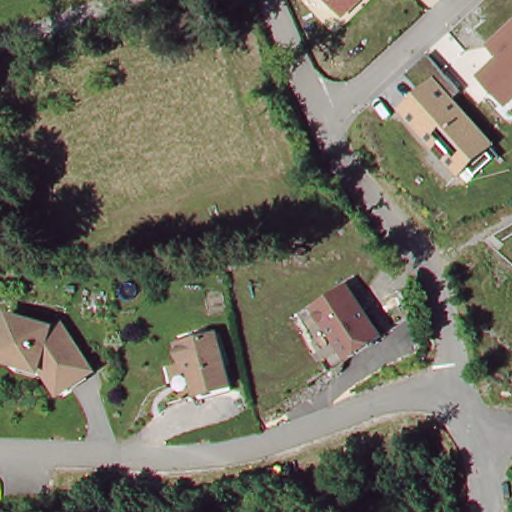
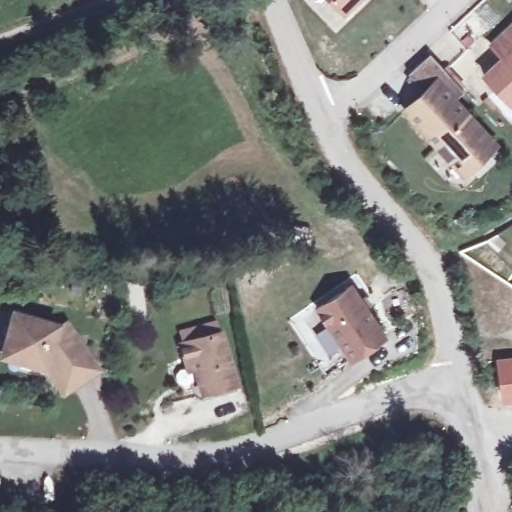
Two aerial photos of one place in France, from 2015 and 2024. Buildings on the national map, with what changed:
unchanged [(347,16),(332,0),(364,0),(347,16)]
unchanged [(502,56),(491,43),(512,23),(512,105),(481,75),(502,56)]
unchanged [(465,89),(458,97),(501,145),(495,151),(500,159),(482,175),(475,169),(464,178),(402,110),(425,90),(412,73),(432,54),(465,89)]
unchanged [(349,291),(383,338),(351,361),(318,312),(349,291)]
unchanged [(2,350),(12,318),(55,331),(63,325),(79,348),(97,373),(67,396),(52,375),(27,368),(2,361),(2,350)]
unchanged [(186,368),(177,370),(173,353),(215,343),(230,391),(195,400),(186,368)]
new [(499,359),(512,357),(512,400),(502,401),(499,359)]

